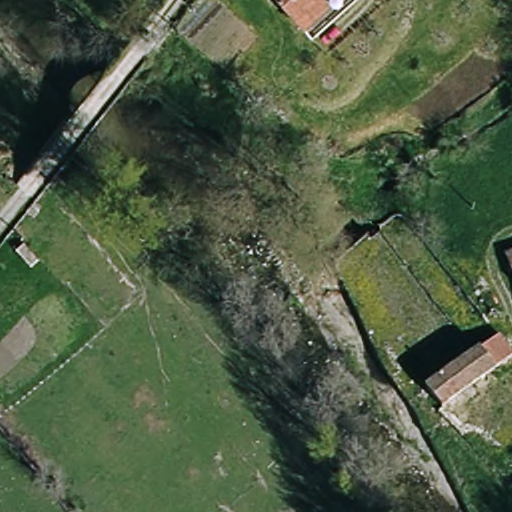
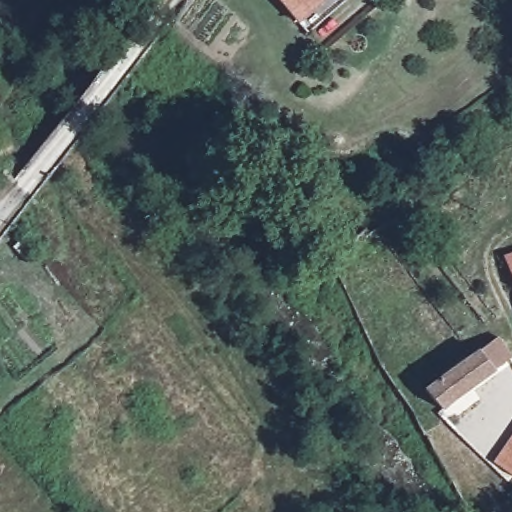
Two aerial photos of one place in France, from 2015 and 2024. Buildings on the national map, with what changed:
unchanged [(330,0),(331,2),(303,24),(282,0),(330,0)]
unchanged [(494,263),(512,255),(512,293),(506,295),(494,263)]
unchanged [(496,337),(512,360),(512,369),(504,375),(450,412),(430,383),(482,346),(496,337)]
demolished [(512,401),(504,391),(512,383),(512,401)]
new [(512,436),(512,478),(492,463),(512,436)]

